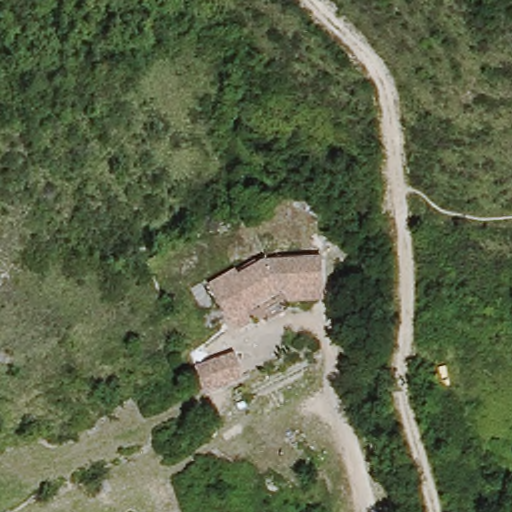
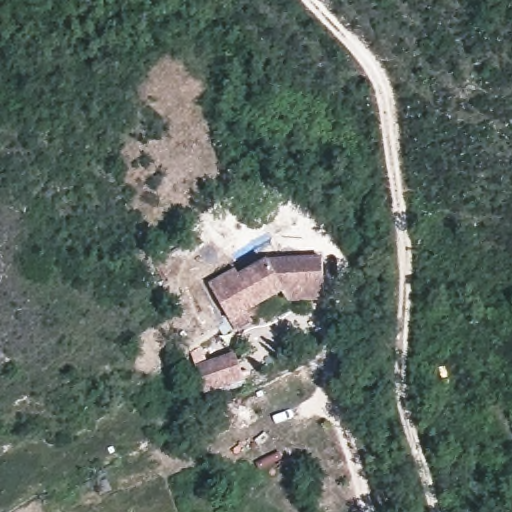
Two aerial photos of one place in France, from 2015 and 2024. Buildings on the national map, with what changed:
unchanged [(238,267),(243,274),(269,260),(328,254),(328,299),(287,304),(281,289),(256,300),(263,313),(239,326),(213,281),(238,267)]
unchanged [(251,376),(209,394),(196,366),(237,349),(251,376)]

